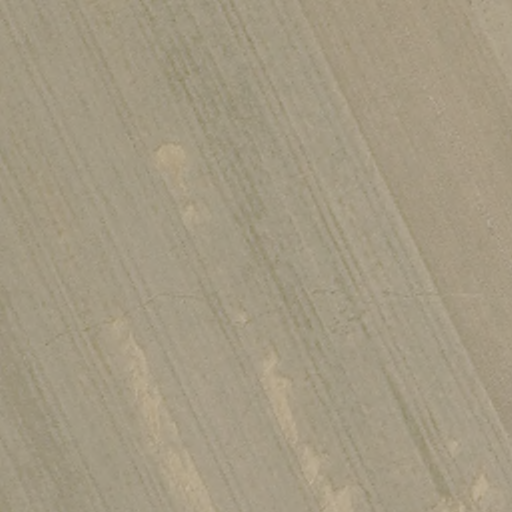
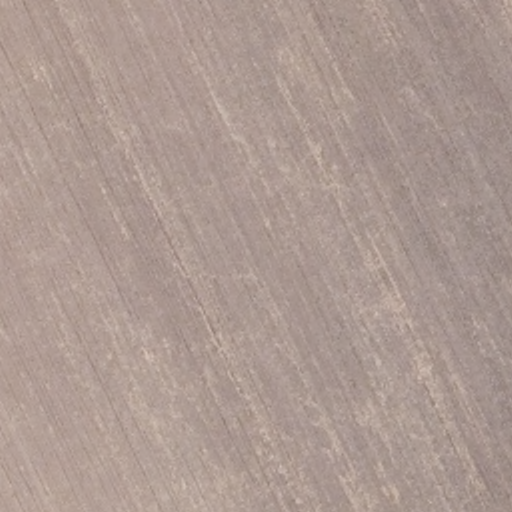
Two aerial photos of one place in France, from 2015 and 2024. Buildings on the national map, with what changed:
[]

